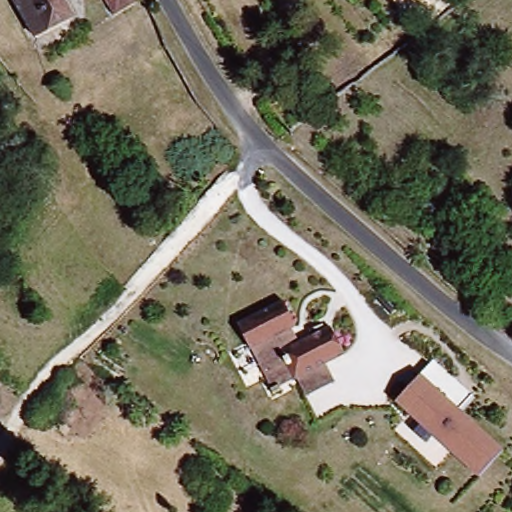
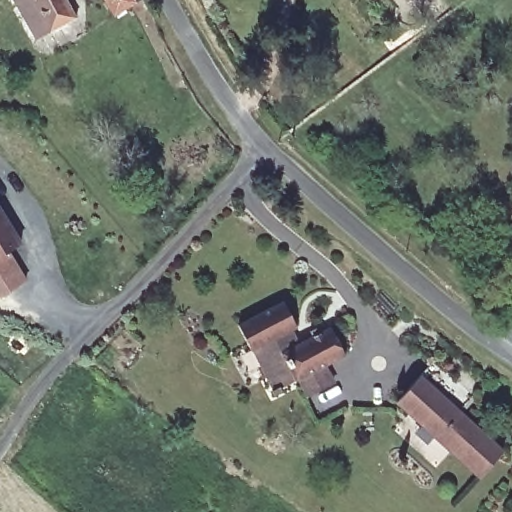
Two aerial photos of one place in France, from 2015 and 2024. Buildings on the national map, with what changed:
unchanged [(41,39),(19,0),(72,0),(81,16),(41,39)]
unchanged [(115,16),(105,0),(134,0),(136,3),(115,16)]
new [(23,242),(8,250),(0,255),(0,207),(23,242)]
new [(0,299),(0,255),(8,250),(27,282),(0,299)]
unchanged [(299,378),(296,380),(289,367),(268,376),(254,351),(252,352),(239,325),(284,302),(297,327),(288,332),(295,346),(331,327),(345,355),(324,366),(332,382),(308,395),(299,378)]
unchanged [(424,372),(504,452),(478,478),(395,404),(424,372)]

